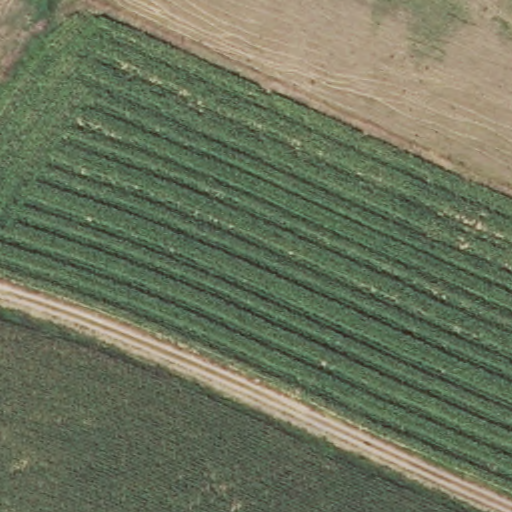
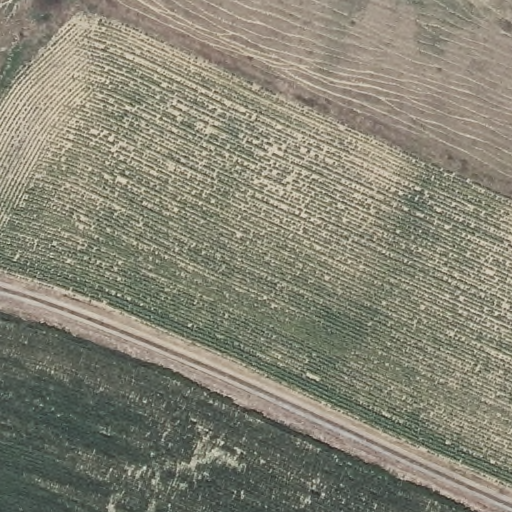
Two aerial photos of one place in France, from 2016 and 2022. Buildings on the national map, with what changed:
[]

